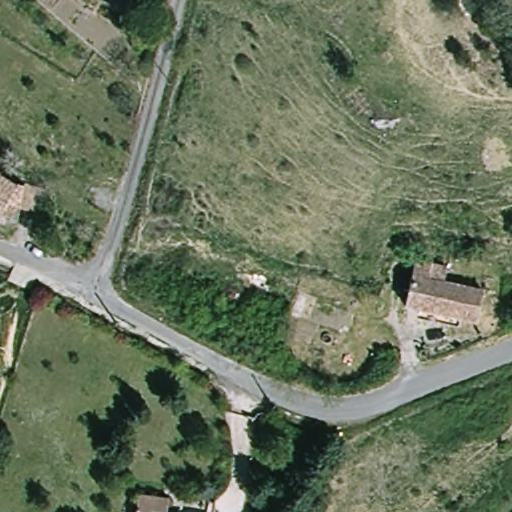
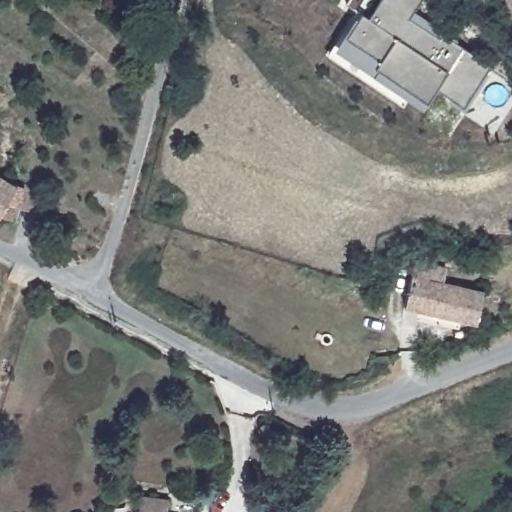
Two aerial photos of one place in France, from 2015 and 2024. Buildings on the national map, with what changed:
new [(333,47),(343,35),(358,12),(368,18),(380,0),(420,0),(412,11),(443,30),(442,34),(489,65),(462,105),(435,88),(422,107),(408,99),(403,105),(325,55),(333,47)]
unchanged [(0,217),(0,179),(15,189),(17,183),(45,190),(38,214),(16,208),(11,220),(0,217)]
unchanged [(414,262),(446,269),(442,285),(482,293),(476,322),(405,307),(414,262)]
unchanged [(142,496),(173,500),(172,512),(140,512),(142,496)]

